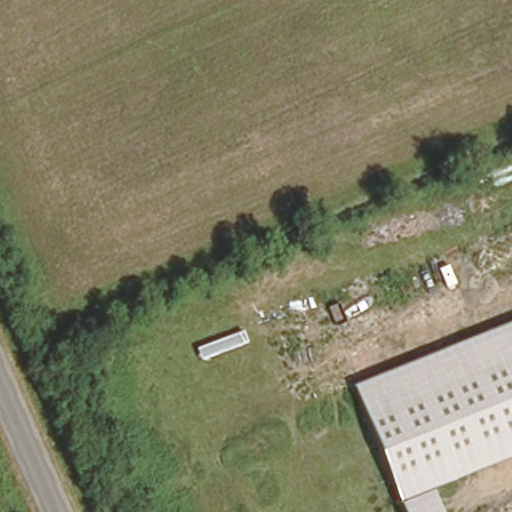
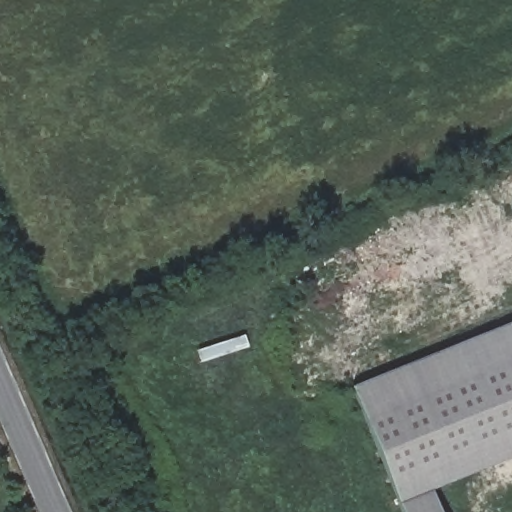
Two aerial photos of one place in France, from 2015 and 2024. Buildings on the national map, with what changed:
unchanged [(353,387),(512,324),(512,457),(433,489),(442,512),(400,512),(353,387)]

